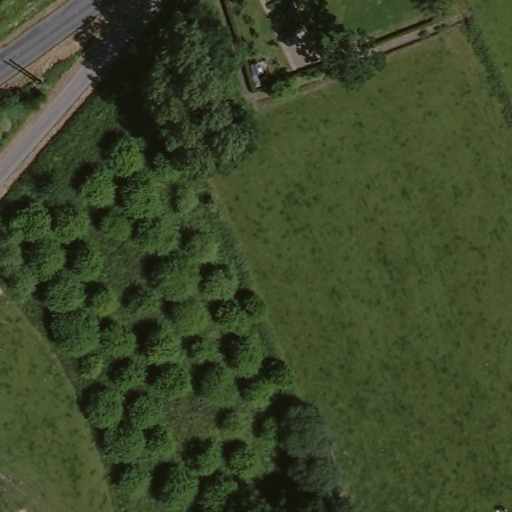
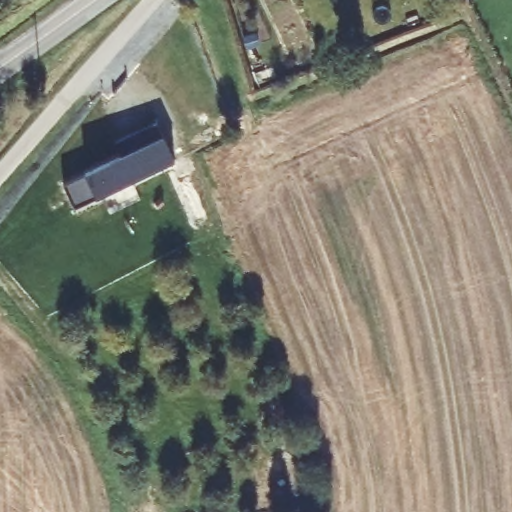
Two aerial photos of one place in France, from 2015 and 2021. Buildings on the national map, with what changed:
new [(175,161),(74,210),(62,183),(120,155),(113,143),(156,123),(175,161)]

